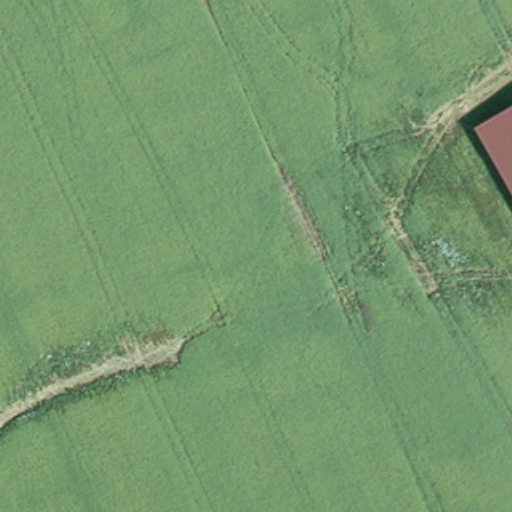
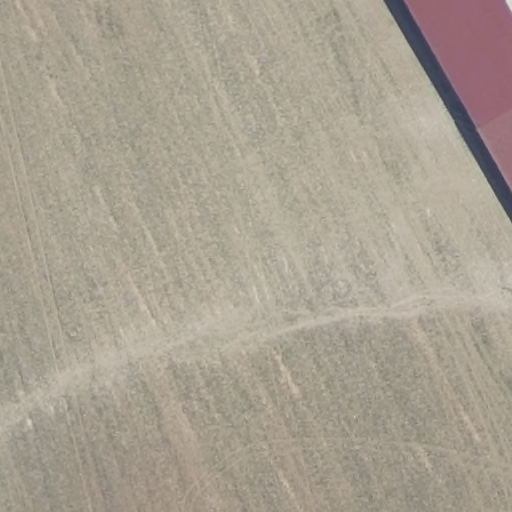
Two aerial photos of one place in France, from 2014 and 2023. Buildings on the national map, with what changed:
new [(512,24),(512,107),(475,128),(401,0),(499,0),(512,24)]
unchanged [(512,107),(512,194),(475,128),(512,107)]

